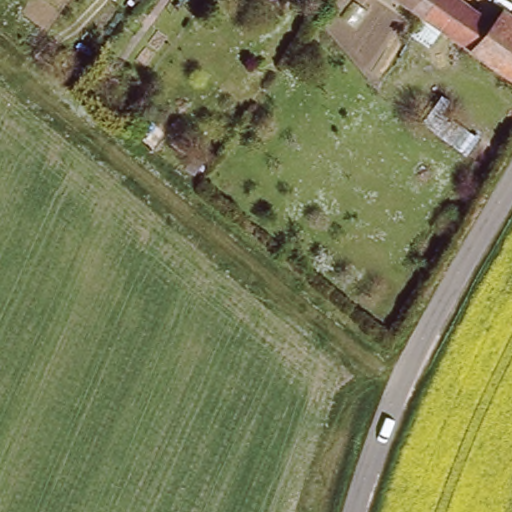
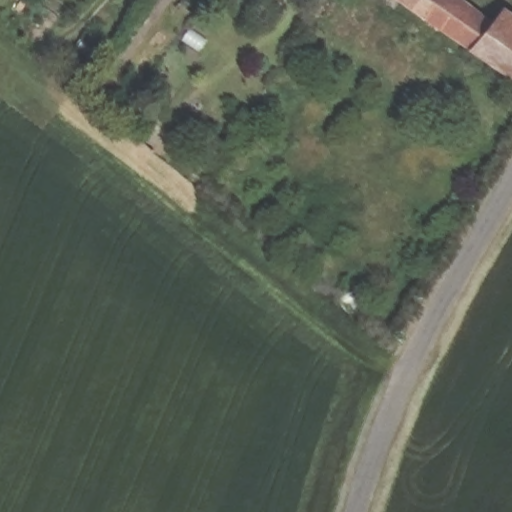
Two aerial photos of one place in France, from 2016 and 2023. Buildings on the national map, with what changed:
unchanged [(487,20),(467,50),(395,0),(459,0),(487,20)]
unchanged [(512,16),(512,81),(467,50),(487,20),(497,6),(512,16)]

